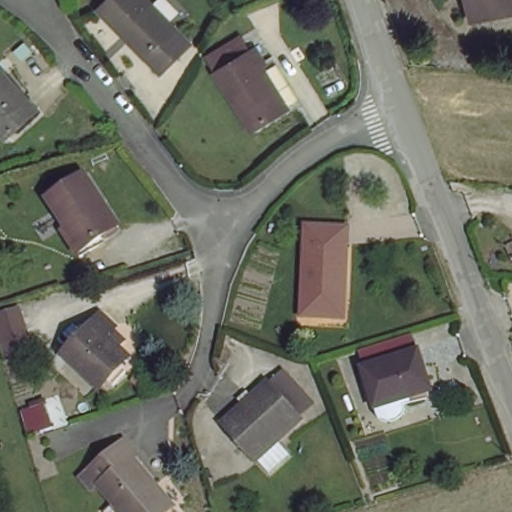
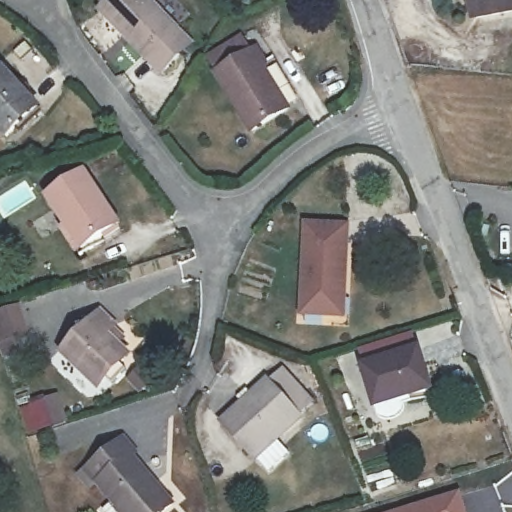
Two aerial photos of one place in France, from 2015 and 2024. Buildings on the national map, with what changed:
unchanged [(177,51),(183,58),(166,74),(99,11),(109,0),(147,0),(188,40),(177,51)]
unchanged [(478,13),(475,0),(512,0),(512,7),(478,13)]
unchanged [(263,55),(259,59),(284,100),(248,122),(213,66),(254,41),(263,55)]
unchanged [(41,100),(9,130),(0,119),(0,69),(8,61),(41,100)]
unchanged [(80,250),(63,221),(69,218),(51,188),(89,165),(120,220),(101,231),(103,237),(80,250)]
unchanged [(334,313),(304,311),(309,220),(352,223),(348,282),(346,314),(334,313)]
unchanged [(58,348),(99,307),(114,323),(105,333),(123,350),(116,358),(124,368),(109,381),(99,372),(90,381),(58,348)]
unchanged [(30,348),(5,356),(0,338),(0,315),(19,310),(30,348)]
unchanged [(433,385),(381,402),(367,363),(421,345),(433,385)]
unchanged [(219,421),(284,361),(318,399),(253,456),(219,421)]
unchanged [(103,510),(114,500),(88,468),(128,434),(143,451),(136,456),(174,501),(163,512),(106,512),(103,510)]
new [(459,490),(467,512),(391,512),(459,490)]

